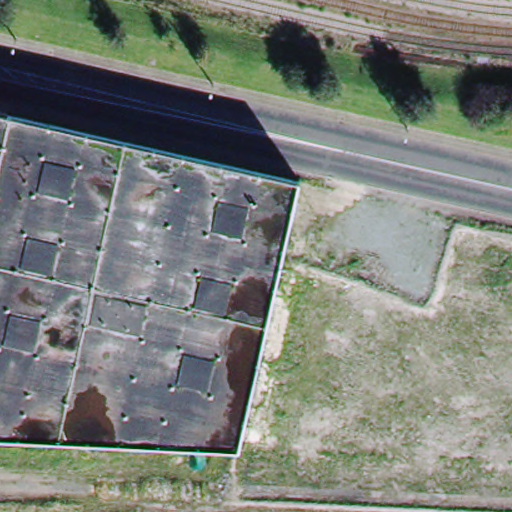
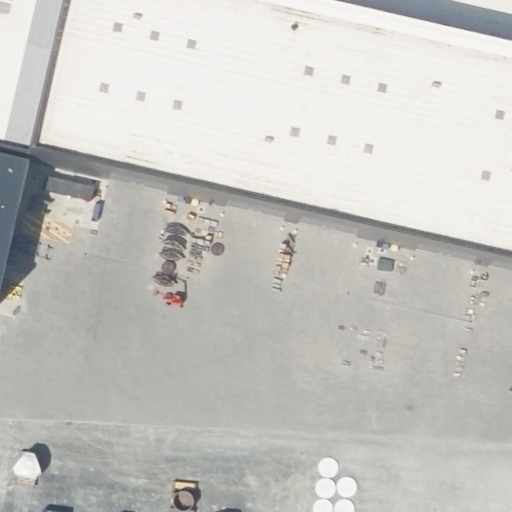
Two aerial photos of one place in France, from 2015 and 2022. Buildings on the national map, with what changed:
new [(0,171),(0,0),(512,0),(512,286),(0,171)]
demolished [(278,288),(256,388),(242,448),(0,436),(0,160),(4,143),(10,115),(302,181),(296,209),(278,288)]

